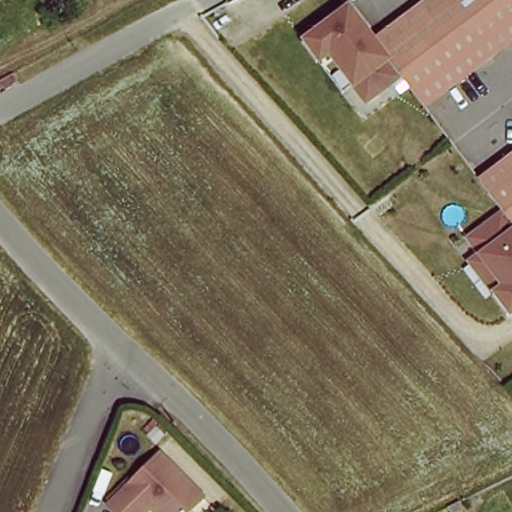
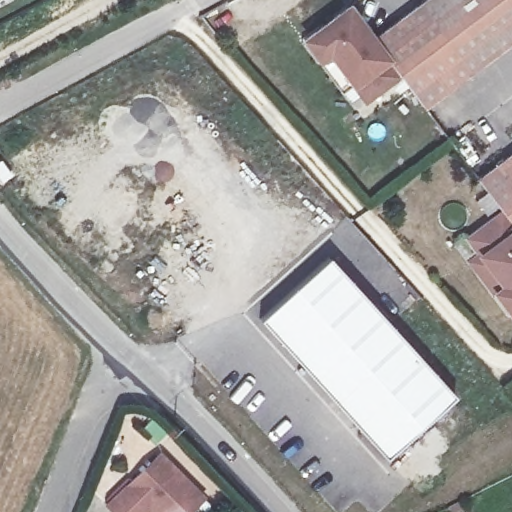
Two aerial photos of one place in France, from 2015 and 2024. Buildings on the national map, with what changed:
unchanged [(479,68),(426,107),(401,74),(374,38),(425,0),(512,0),(512,44),(479,68)]
unchanged [(318,58),(316,59),(302,40),(306,37),(349,5),(374,38),(401,74),(367,99),(355,81),(343,90),(318,58)]
unchanged [(493,294),(469,262),(479,255),(467,239),(501,214),(476,181),(512,154),(512,309),(508,312),(504,315),(489,297),(493,294)]
new [(329,256),(454,394),(386,457),(261,320),(329,256)]
unchanged [(207,486),(189,512),(154,512),(154,511),(153,512),(114,512),(158,452),(207,486)]

